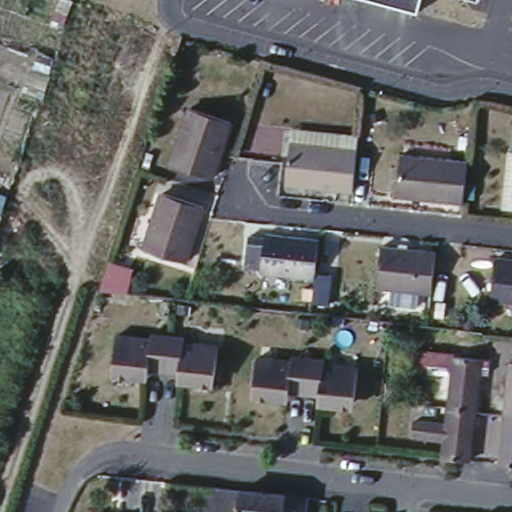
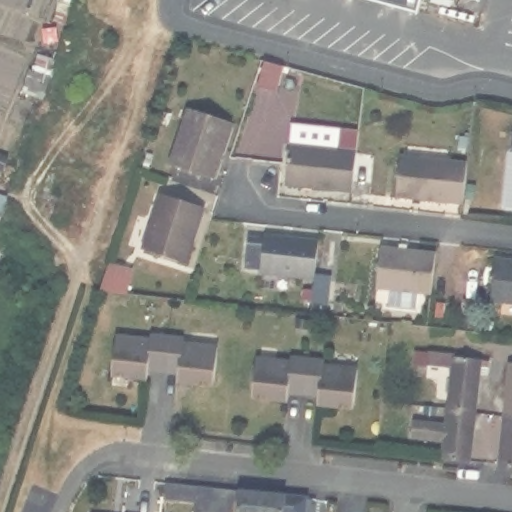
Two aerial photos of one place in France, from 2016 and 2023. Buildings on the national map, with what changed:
unchanged [(414,2),(406,0),(415,0),(414,2)]
unchanged [(163,164),(182,108),(223,122),(205,177),(163,164)]
unchanged [(512,127),(512,146),(508,146),(510,129),(511,127),(512,127)]
unchanged [(279,189),(285,133),(352,140),(345,196),(279,189)]
unchanged [(388,196),(393,154),(460,161),(455,204),(388,196)]
unchanged [(137,243),(155,188),(196,201),(177,256),(137,243)]
unchanged [(320,300),(304,298),(307,274),(252,268),(254,264),(239,263),(243,231),(257,233),(258,228),(312,235),(307,268),(324,271),(320,300)]
unchanged [(417,283),(415,298),(388,294),(389,280),(374,278),(380,236),(434,242),(429,284),(417,283)]
unchanged [(488,254),(512,257),(512,298),(484,295),(488,254)]
unchanged [(134,268),(126,294),(98,291),(108,260),(134,268)]
unchanged [(180,369),(149,365),(149,368),(148,374),(112,371),(113,365),(117,332),(153,335),(154,331),(186,334),(186,339),(218,342),(215,375),(214,381),(179,377),(179,371),(180,369)]
unchanged [(445,401),(450,362),(426,359),(427,346),(451,348),(451,351),(488,355),(487,363),(478,362),(473,404),(445,401)]
unchanged [(319,399),(320,393),(320,390),(289,387),(289,390),(289,396),(253,392),(254,386),(258,353),(292,357),(293,352),(326,355),(325,360),(359,364),(356,397),(355,403),(319,399)]
unchanged [(501,362),(512,364),(512,415),(496,413),(501,362)]
unchanged [(441,433),(412,430),(413,417),(443,419),(445,404),(445,401),(473,404),(473,406),(467,455),(439,452),(441,433)]
unchanged [(512,415),(512,466),(491,463),(496,413),(512,415)]
unchanged [(297,512),(258,512),(230,509),(230,508),(188,503),(189,490),(157,487),(158,474),(300,488),(297,512)]
unchanged [(136,512),(127,512),(127,511),(136,512)]

